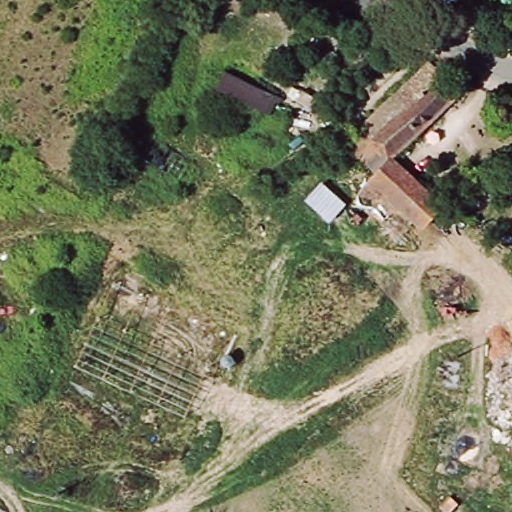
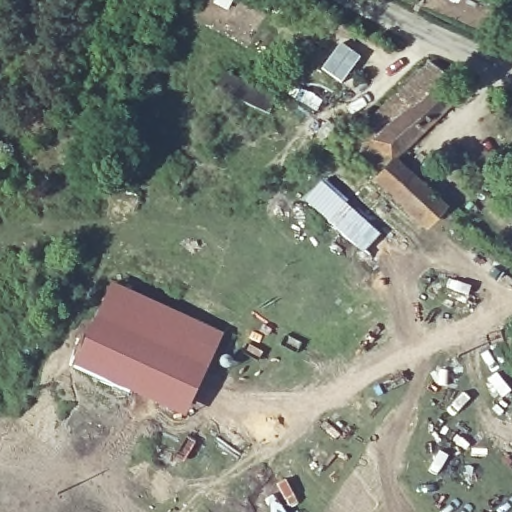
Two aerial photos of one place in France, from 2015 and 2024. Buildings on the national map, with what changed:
unchanged [(427,62),(459,90),(393,159),(441,204),(408,240),(356,192),(375,171),(345,143),(427,62)]
demolished [(442,277),(440,297),(384,290),(387,270),(442,277)]
new [(111,281),(223,332),(185,417),(73,368),(111,281)]

